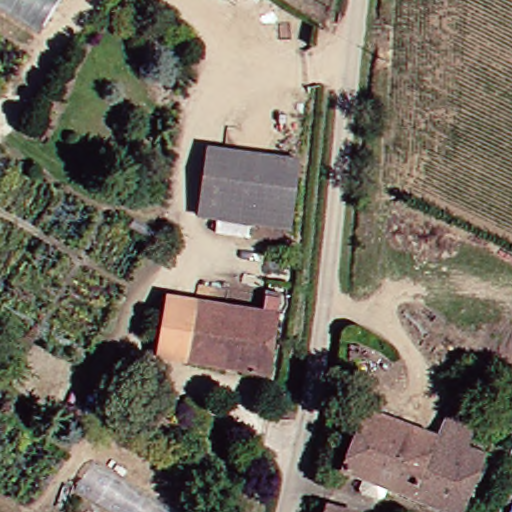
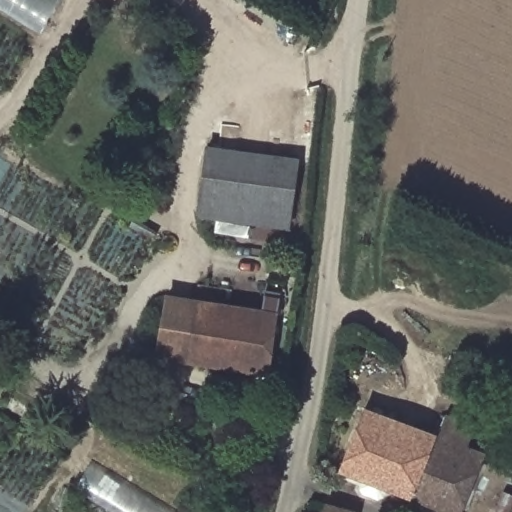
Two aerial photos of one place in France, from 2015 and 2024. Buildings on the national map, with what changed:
unchanged [(0,9),(0,0),(49,0),(32,29),(0,9)]
unchanged [(295,160),(283,227),(179,211),(190,145),(295,160)]
unchanged [(157,294),(254,307),(255,298),(270,302),(257,372),(146,355),(157,294)]
unchanged [(434,413),(458,423),(451,441),(465,448),(462,455),(468,462),(452,501),(436,510),(327,467),(355,404),(424,432),(434,413)]
unchanged [(113,512),(67,487),(77,461),(168,512),(113,512)]
unchanged [(346,510),(345,512),(312,512),(316,500),(346,510)]

